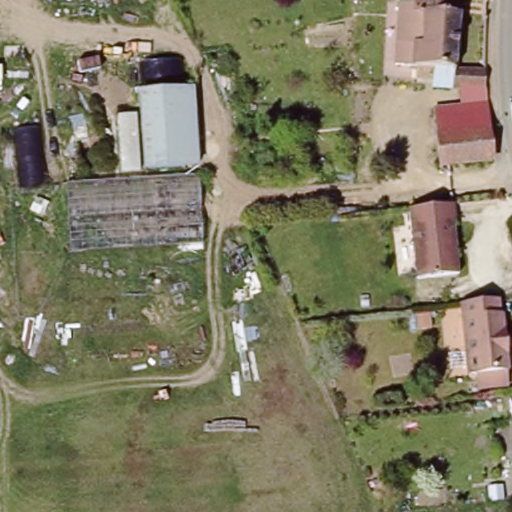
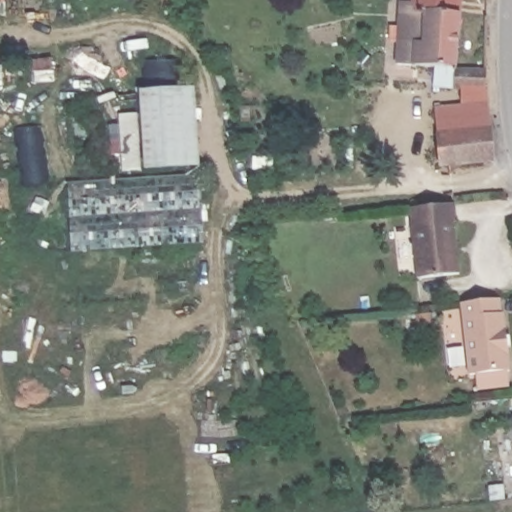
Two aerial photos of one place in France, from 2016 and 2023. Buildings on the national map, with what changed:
unchanged [(456,106),(454,84),(431,85),(430,65),(406,64),(407,43),(395,40),(399,6),(408,8),(410,0),(463,0),(455,70),(488,69),(490,88),(487,89),(493,164),(441,169),(433,109),(456,106)]
unchanged [(142,90),(185,89),(187,161),(144,161),(142,90)]
unchanged [(453,202),(457,277),(411,279),(403,206),(453,202)]
unchanged [(491,299),(493,317),(497,317),(502,372),(463,374),(455,304),(491,299)]

